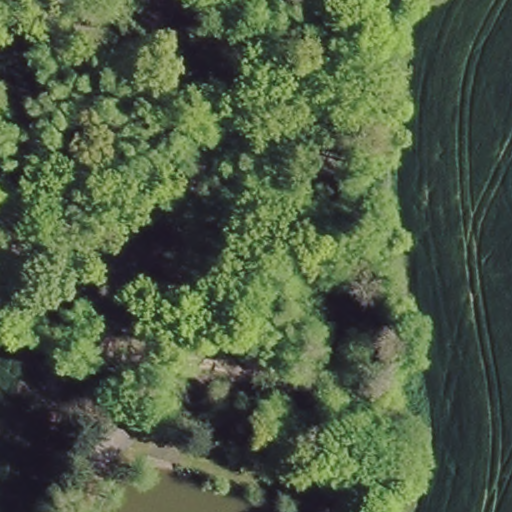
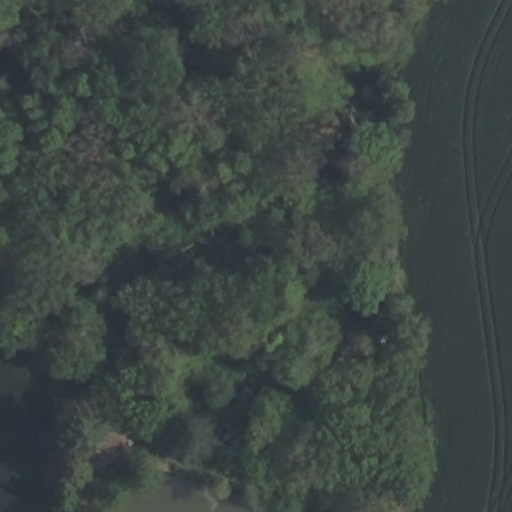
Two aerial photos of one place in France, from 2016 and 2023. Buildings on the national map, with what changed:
unchanged [(132,444),(87,475),(62,441),(107,413),(132,444)]

